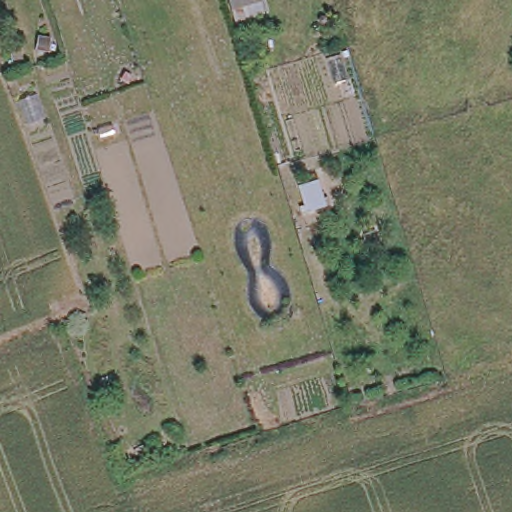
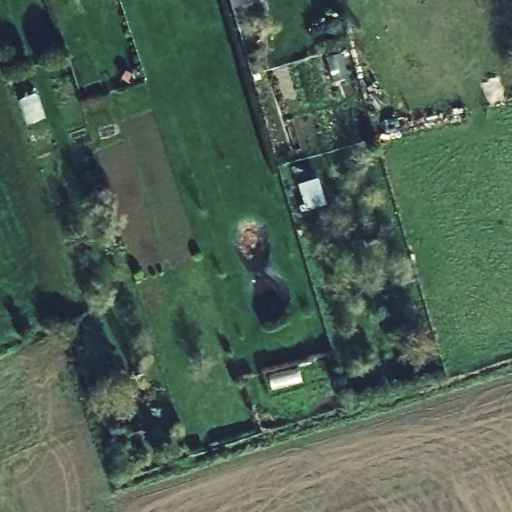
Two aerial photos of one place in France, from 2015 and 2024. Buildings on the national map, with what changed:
unchanged [(257,0),(237,5),(235,0),(257,0)]

